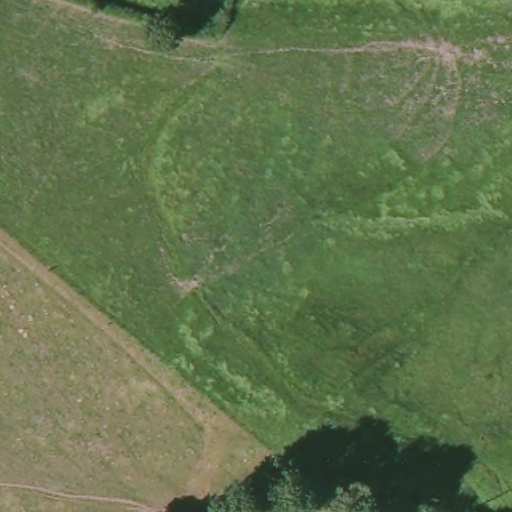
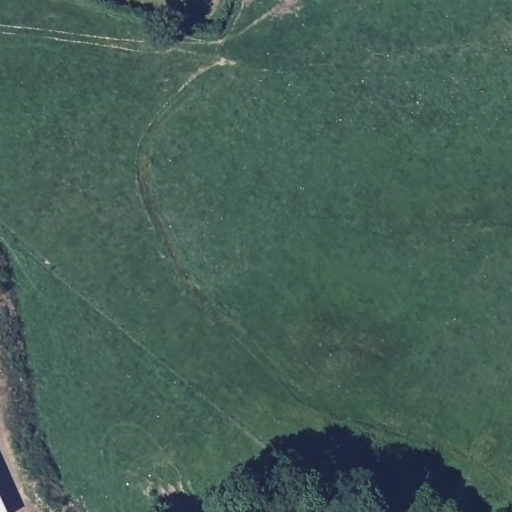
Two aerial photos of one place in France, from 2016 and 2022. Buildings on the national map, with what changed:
new [(0,502),(4,512),(0,512),(0,502)]

